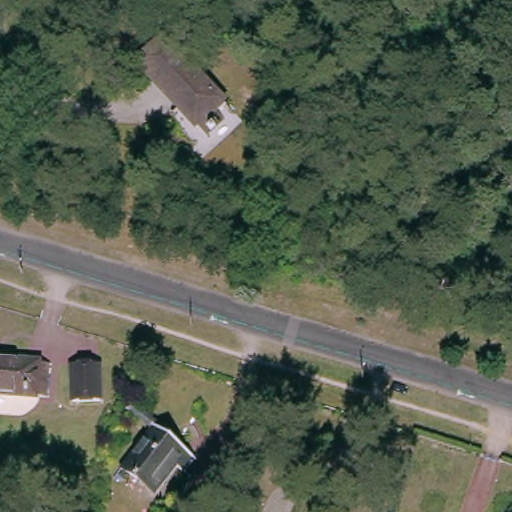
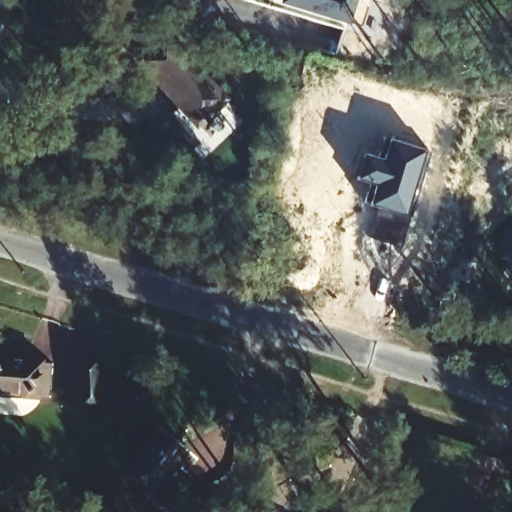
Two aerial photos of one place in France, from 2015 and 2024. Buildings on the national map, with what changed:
new [(347,25),(280,4),(281,0),(356,0),(347,25)]
unchanged [(225,98),(217,105),(226,115),(206,134),(132,58),(162,34),(225,98)]
new [(405,216),(412,216),(401,248),(368,237),(377,207),(364,204),(371,183),(356,179),(365,154),(383,160),(389,140),(427,152),(405,216)]
new [(510,223),(512,224),(512,263),(497,258),(510,223)]
unchanged [(52,357),(50,391),(0,386),(0,351),(52,357)]
unchanged [(121,394),(93,395),(93,358),(120,357),(121,394)]
unchanged [(178,473),(172,467),(150,493),(118,468),(151,426),(184,452),(191,457),(178,473)]

